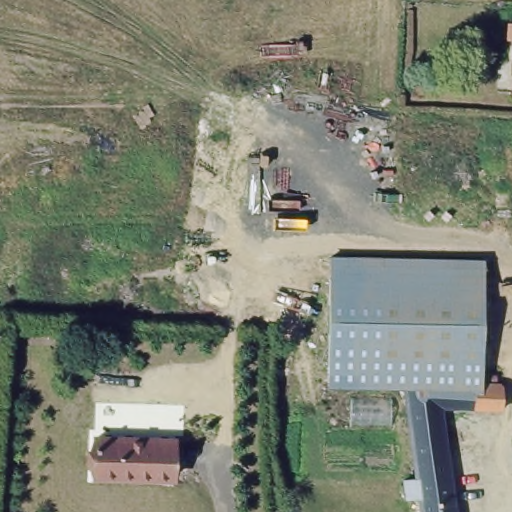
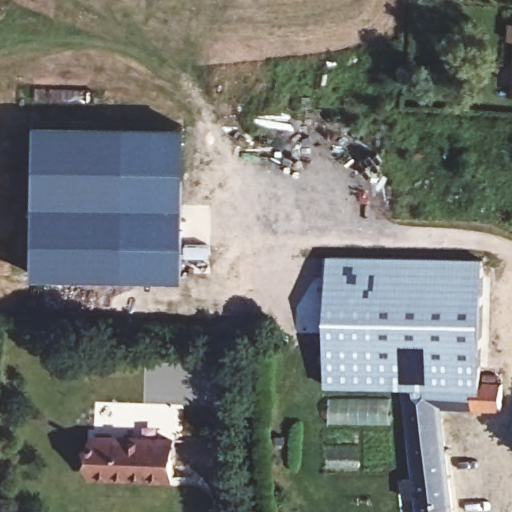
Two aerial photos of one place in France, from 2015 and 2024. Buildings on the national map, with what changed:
unchanged [(507,43),(508,26),(512,26),(512,43),(507,43)]
new [(183,117),(183,266),(32,266),(32,117),(183,117)]
unchanged [(358,255),(360,373),(386,383),(340,385),(328,386),(328,254),(337,254),(358,255)]
unchanged [(481,258),(480,383),(403,387),(386,383),(360,373),(358,255),(481,258)]
unchanged [(500,383),(500,408),(440,406),(453,512),(420,512),(403,387),(480,383),(500,383)]
unchanged [(91,476),(92,440),(168,441),(168,477),(91,476)]

